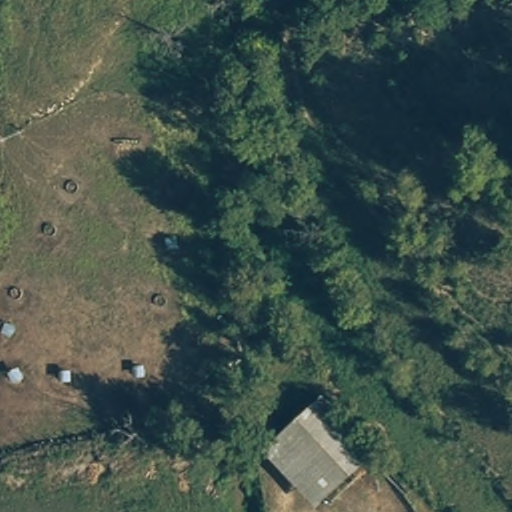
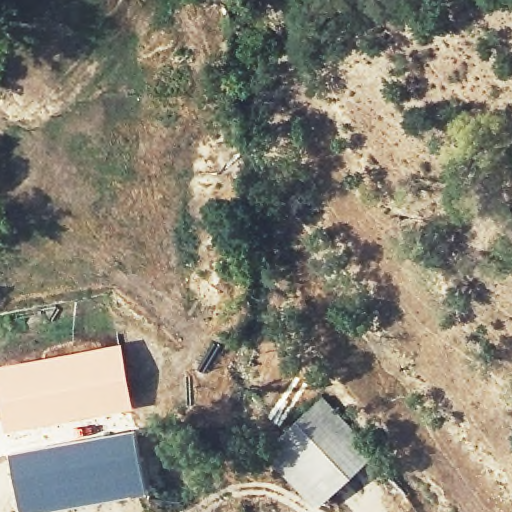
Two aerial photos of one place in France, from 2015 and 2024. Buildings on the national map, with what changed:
new [(121,348),(131,407),(8,430),(0,385),(0,371),(121,348)]
demolished [(261,451),(321,392),(379,448),(317,507),(261,451)]
new [(371,457),(318,500),(268,440),(322,398),(371,457)]
new [(1,424),(0,424),(0,418),(1,424)]
new [(148,492),(38,512),(18,512),(8,450),(136,426),(148,492)]
new [(1,435),(0,436),(0,428),(1,435)]

